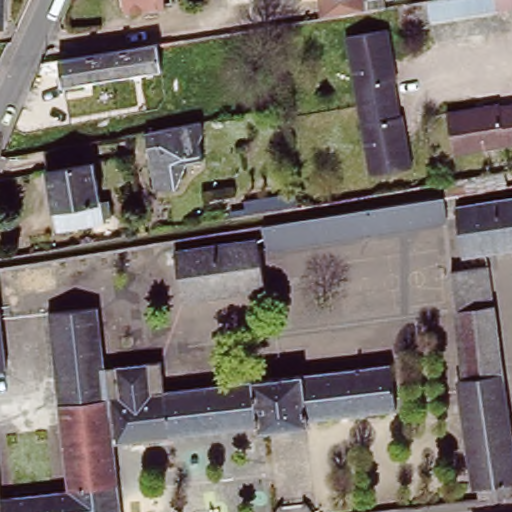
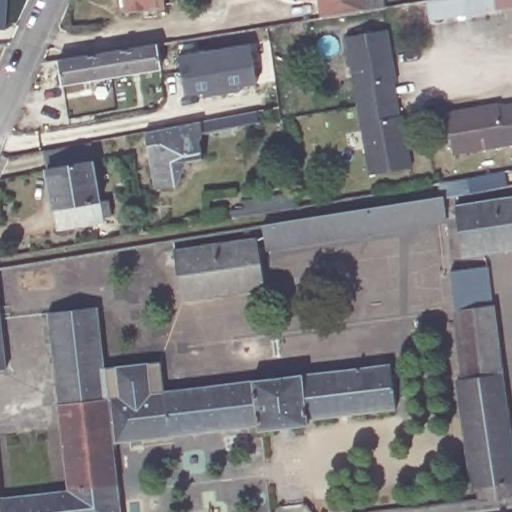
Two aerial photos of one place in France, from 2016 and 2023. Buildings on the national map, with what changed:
unchanged [(0,29),(0,0),(7,0),(6,29),(0,29)]
unchanged [(125,12),(124,0),(164,0),(165,9),(125,12)]
unchanged [(324,19),(321,0),(365,0),(367,12),(324,19)]
unchanged [(512,0),(512,6),(427,20),(424,3),(444,0),(512,0)]
unchanged [(391,27),(398,78),(396,78),(398,97),(401,113),(403,113),(411,167),(370,174),(348,33),(391,27)]
unchanged [(161,70),(56,86),(56,80),(47,81),(44,62),(157,44),(161,70)]
new [(248,46),(255,87),(238,91),(238,95),(218,98),(211,52),(248,46)]
new [(211,52),(218,98),(201,101),(200,97),(183,100),(176,58),(211,52)]
unchanged [(447,111),(500,102),(501,107),(512,105),(512,140),(454,150),(447,111)]
unchanged [(201,127),(203,137),(199,145),(202,164),(189,165),(177,191),(155,194),(146,137),(201,127)]
unchanged [(55,233),(45,176),(42,156),(89,147),(92,167),(102,226),(55,233)]
unchanged [(439,197),(441,224),(351,238),(348,212),(439,197)]
unchanged [(461,210),(512,202),(512,253),(467,258),(461,210)]
unchanged [(348,212),(351,238),(265,252),(261,227),(348,212)]
unchanged [(256,241),(262,292),(181,302),(175,252),(256,241)]
unchanged [(472,486),(469,486),(455,378),(461,378),(452,271),(484,267),(500,385),(512,472),(512,480),(511,480),(512,487),(512,495),(474,500),(472,486)]
unchanged [(1,502),(65,494),(55,407),(59,407),(48,316),(94,312),(102,372),(157,365),(162,395),(393,368),(398,412),(310,422),(311,429),(261,434),(261,428),(125,445),(121,431),(112,432),(119,488),(116,489),(119,512),(0,512),(0,498),(1,502)]
unchanged [(6,370),(0,371),(0,327),(6,370)]

